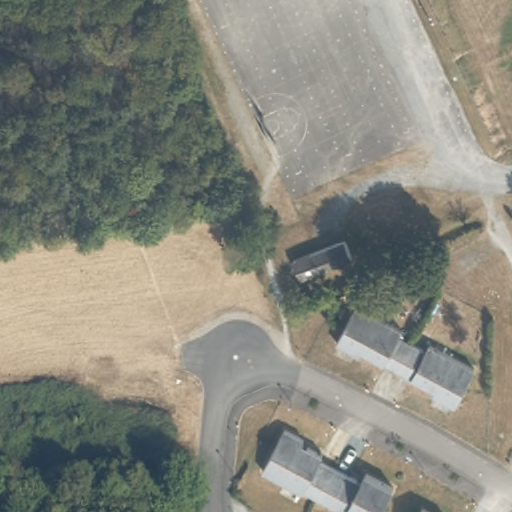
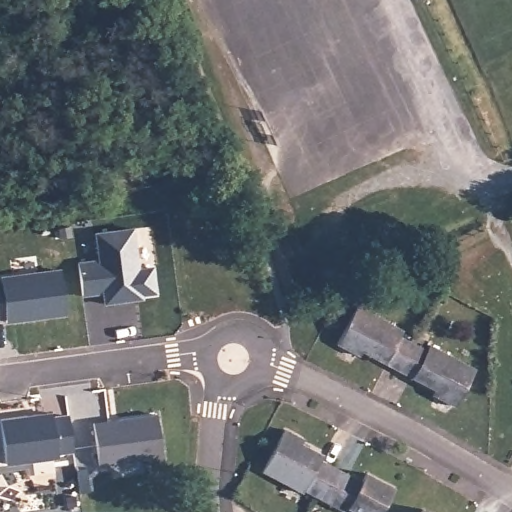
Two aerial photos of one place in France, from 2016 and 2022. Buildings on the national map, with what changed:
new [(134,228),(139,268),(154,266),(156,292),(142,294),(142,299),(104,304),(102,293),(84,296),(79,261),(97,259),(94,233),(134,228)]
demolished [(351,259),(301,279),(293,259),(343,239),(351,259)]
new [(65,315),(7,323),(6,318),(0,319),(0,281),(2,281),(1,276),(59,270),(65,315)]
unchanged [(364,348),(361,353),(339,342),(357,303),(403,328),(401,334),(415,341),(401,369),(364,348)]
unchanged [(415,341),(429,348),(432,344),(477,368),(457,405),(435,394),(437,388),(401,369),(415,341)]
new [(52,412),(52,415),(69,414),(73,451),(57,453),(58,459),(6,465),(1,419),(52,412)]
new [(163,458),(100,466),(93,422),(157,415),(163,458)]
unchanged [(319,495),(306,487),(304,490),(263,467),(285,425),(305,436),(302,440),(323,451),(321,457),(334,464),(319,495)]
unchanged [(367,470),(394,485),(381,512),(361,512),(350,506),(347,509),(319,495),(334,464),(362,479),(367,470)]
unchanged [(434,512),(419,512),(422,506),(434,512)]

